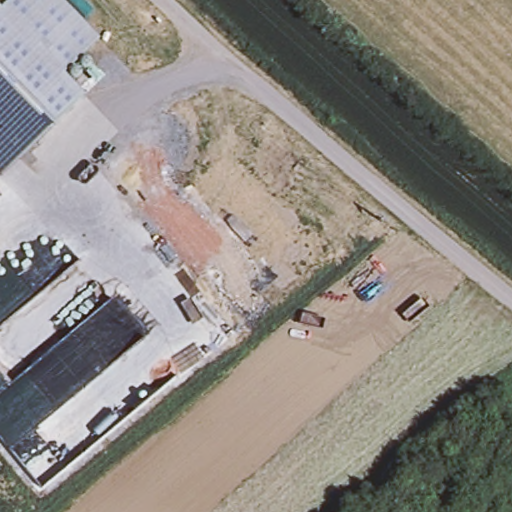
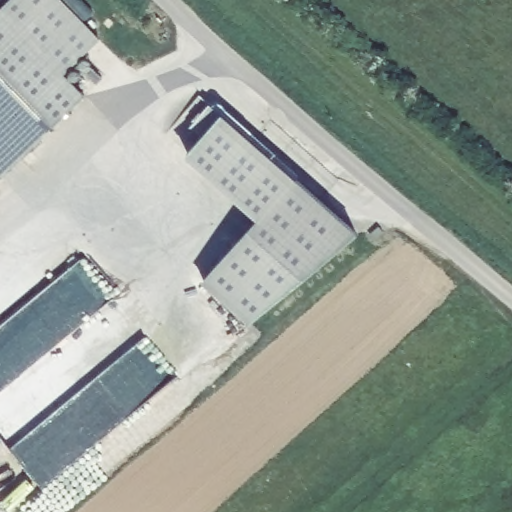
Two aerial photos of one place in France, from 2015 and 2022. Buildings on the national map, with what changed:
unchanged [(100,36),(63,70),(84,92),(0,173),(0,4),(4,0),(65,0),(100,36)]
new [(222,114),(357,231),(250,322),(202,281),(258,217),(185,154),(202,135),(189,126),(210,103),(222,114)]

